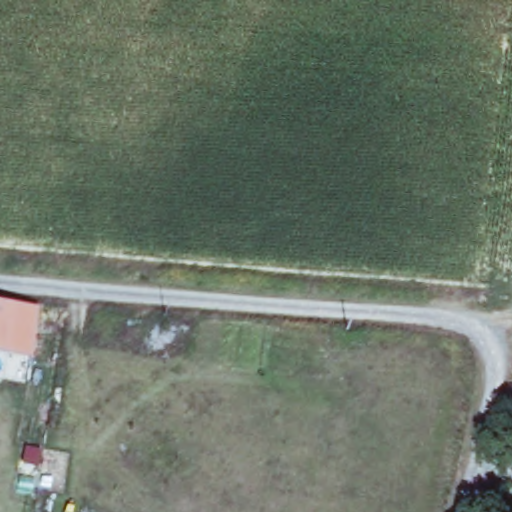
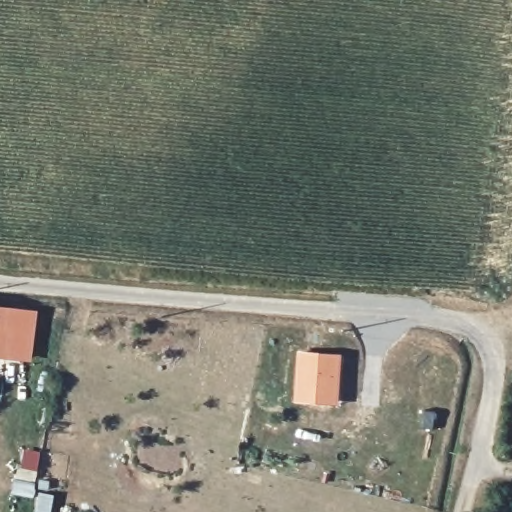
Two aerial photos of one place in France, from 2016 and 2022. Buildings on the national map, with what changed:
unchanged [(0,361),(0,307),(34,311),(30,364),(0,361)]
new [(300,353),(339,356),(336,395),(336,405),(297,402),(298,392),(300,353)]

